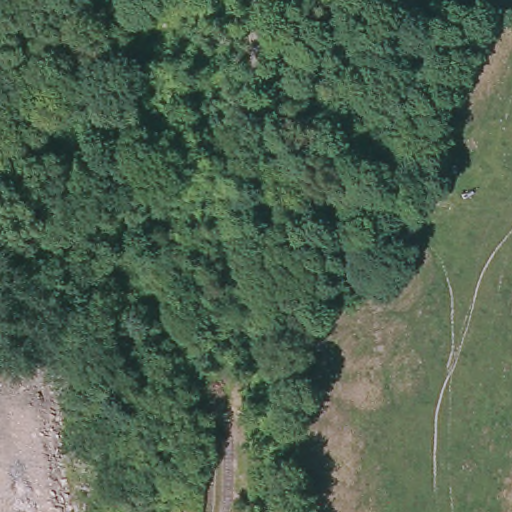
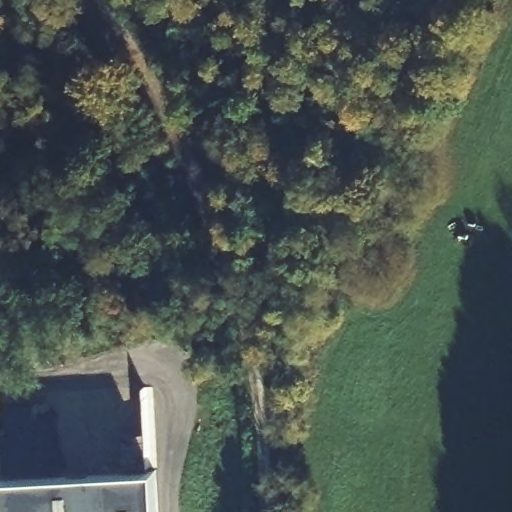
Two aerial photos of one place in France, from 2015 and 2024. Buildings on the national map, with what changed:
new [(152,464),(156,512),(10,512),(7,471),(152,464)]

